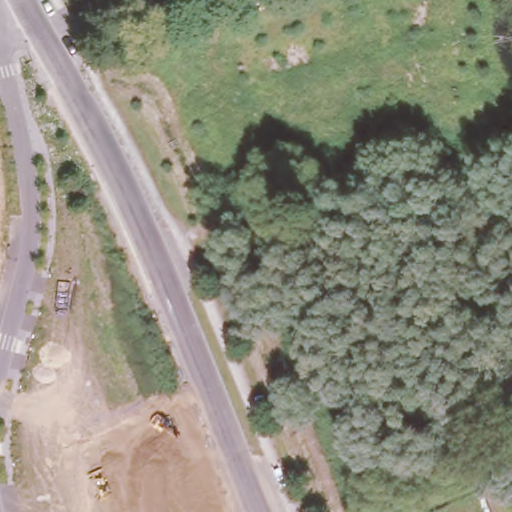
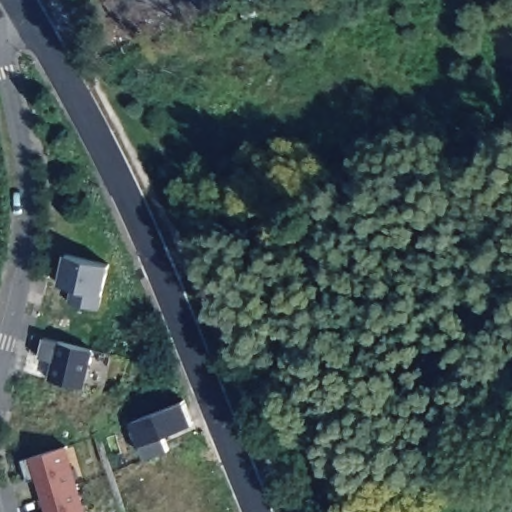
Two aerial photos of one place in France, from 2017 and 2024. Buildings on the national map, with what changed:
unchanged [(94,1),(94,0),(101,0),(94,1)]
new [(109,265),(101,294),(58,283),(65,254),(109,265)]
new [(92,347),(83,386),(49,379),(54,361),(39,358),(43,336),(92,347)]
new [(183,400),(193,423),(164,434),(171,448),(147,458),(131,421),(183,400)]
new [(66,444),(78,483),(43,493),(38,477),(28,480),(21,457),(66,444)]
new [(87,512),(41,512),(48,510),(43,493),(78,483),(87,512)]

